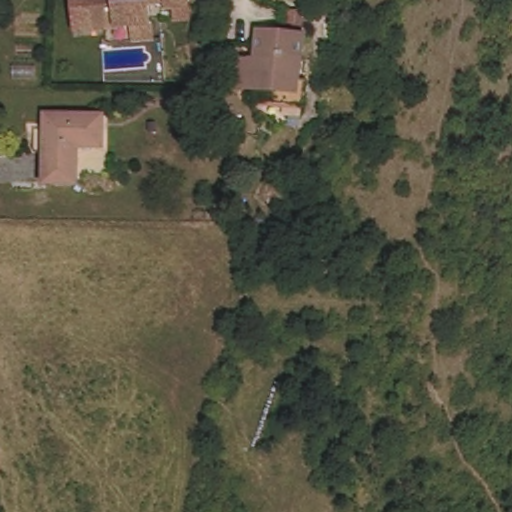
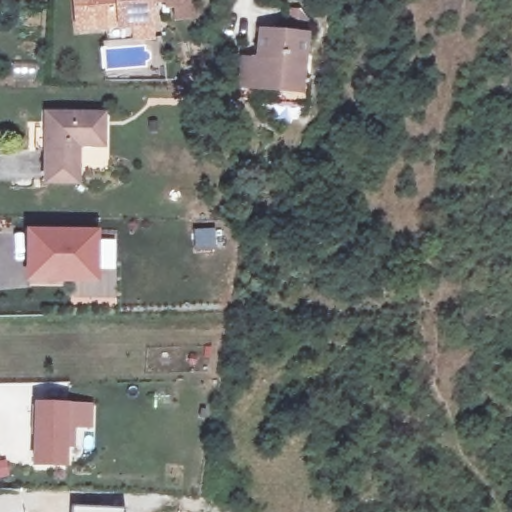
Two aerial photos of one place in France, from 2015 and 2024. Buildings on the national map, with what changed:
unchanged [(106,40),(79,44),(74,0),(163,0),(164,9),(147,12),(150,35),(152,51),(132,54),(130,37),(106,40)]
unchanged [(255,85),(240,84),(242,56),(256,58),(258,28),(304,32),(302,75),(309,76),(307,101),(254,97),(255,85)]
unchanged [(49,149),(39,150),(37,126),(47,126),(47,111),(105,108),(107,140),(81,141),(82,180),(51,181),(49,149)]
new [(27,282),(29,230),(101,231),(100,283),(27,282)]
new [(35,401),(70,403),(66,467),(32,466),(35,401)]
new [(125,510),(124,512),(74,512),(75,508),(125,510)]

